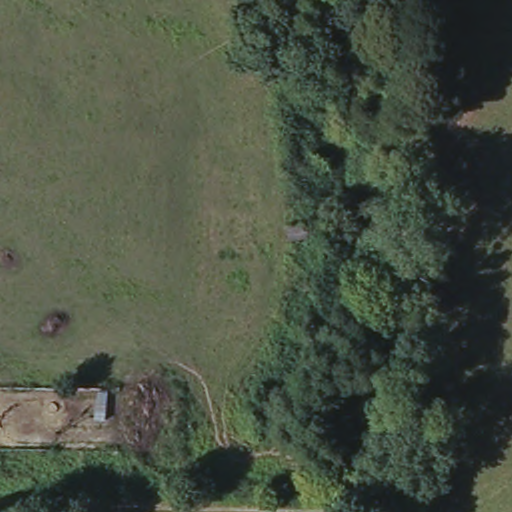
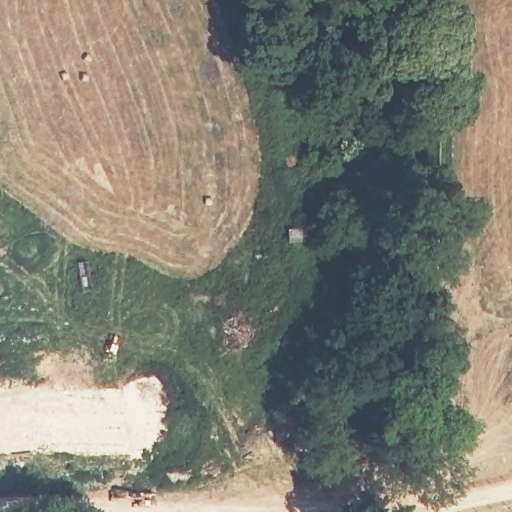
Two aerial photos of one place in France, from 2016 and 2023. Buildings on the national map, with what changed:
unchanged [(290,240),(288,256),(273,255),(274,239),(290,240)]

